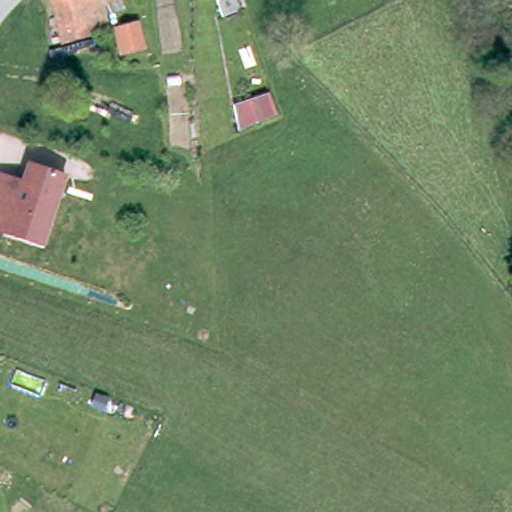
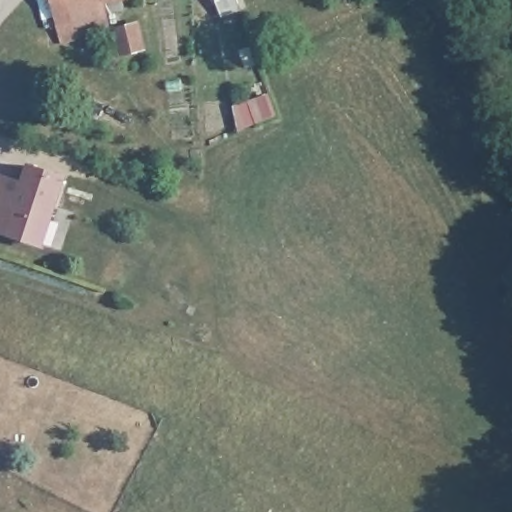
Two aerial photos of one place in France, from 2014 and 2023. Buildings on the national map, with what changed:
unchanged [(125,10),(110,15),(115,29),(63,44),(53,0),(123,0),(125,10)]
unchanged [(206,0),(211,0),(206,1),(206,0)]
unchanged [(242,9),(223,15),(218,0),(239,0),(242,9)]
unchanged [(147,51),(120,57),(118,28),(139,21),(147,51)]
unchanged [(266,95),(273,115),(254,122),(247,102),(266,95)]
unchanged [(0,232),(0,173),(20,179),(27,162),(68,176),(44,246),(0,232)]

